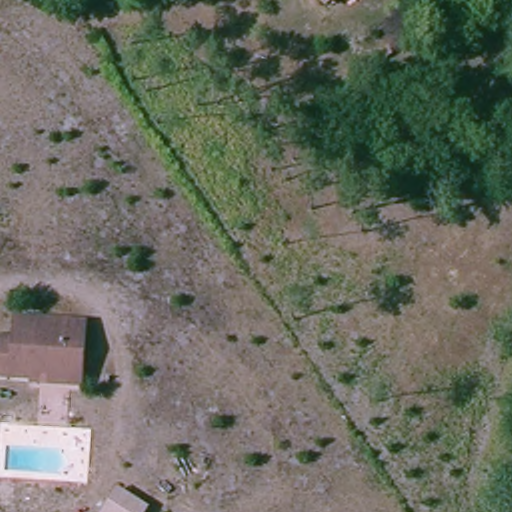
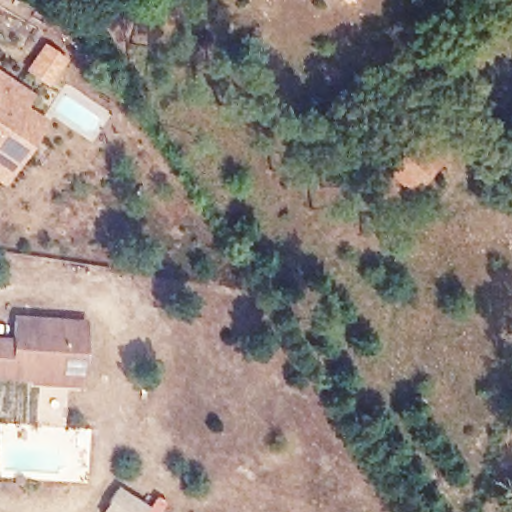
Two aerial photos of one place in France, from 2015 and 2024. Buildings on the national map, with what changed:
unchanged [(328,10),(320,0),(341,0),(328,10)]
new [(29,109),(47,120),(5,187),(0,184),(0,72),(36,96),(29,109)]
unchanged [(424,163),(408,178),(388,157),(404,142),(424,163)]
unchanged [(34,379),(0,376),(0,338),(17,340),(21,319),(91,327),(82,374),(81,390),(33,385),(34,379)]
unchanged [(158,512),(124,512),(135,496),(158,512)]

